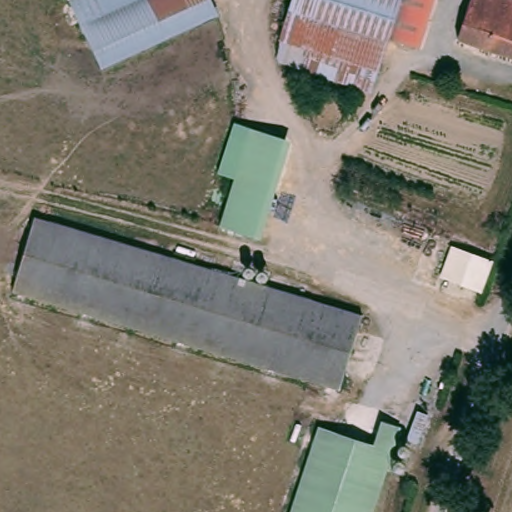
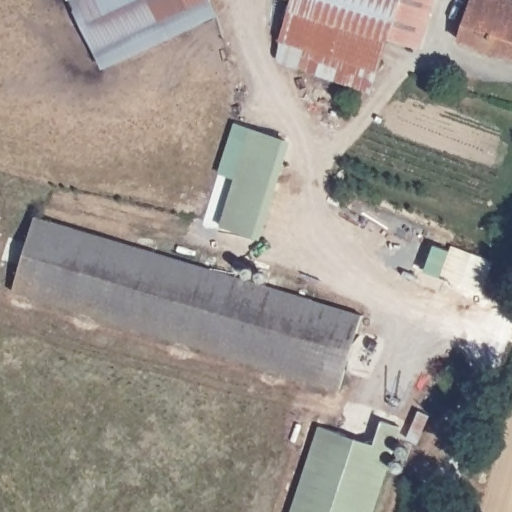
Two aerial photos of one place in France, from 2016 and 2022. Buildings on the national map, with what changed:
unchanged [(92,48),(69,0),(197,0),(92,48)]
unchanged [(394,2),(372,71),(293,46),(291,45),(276,41),(275,40),(288,0),(395,0),(394,2)]
unchanged [(438,16),(426,56),(407,50),(411,36),(395,32),(403,5),(394,2),(395,0),(443,0),(438,16)]
unchanged [(457,39),(470,0),(512,0),(512,57),(457,39)]
unchanged [(283,141),(253,237),(220,226),(250,130),(283,141)]
unchanged [(362,316),(339,390),(12,291),(34,217),(362,316)]
unchanged [(492,262),(481,293),(438,279),(449,247),(492,262)]
unchanged [(288,512),(318,427),(371,446),(380,423),(392,427),(399,429),(370,512),(288,512)]

